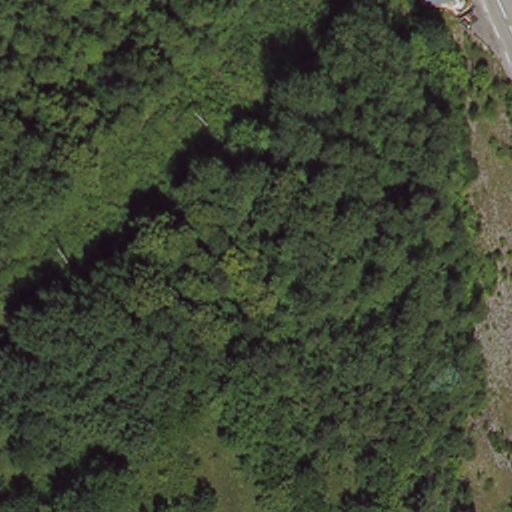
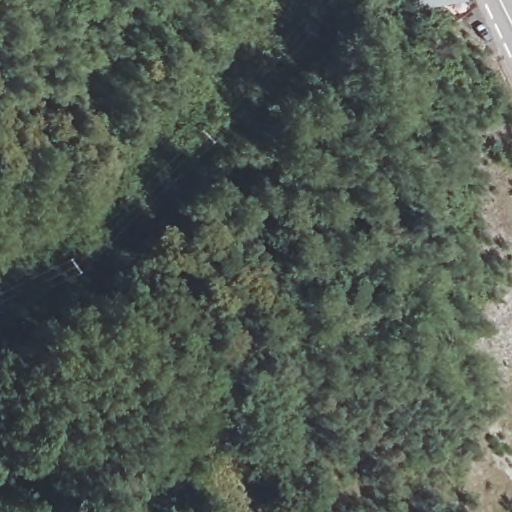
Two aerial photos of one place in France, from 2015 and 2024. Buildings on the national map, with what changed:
unchanged [(423,0),(454,0),(426,8),(423,0)]

